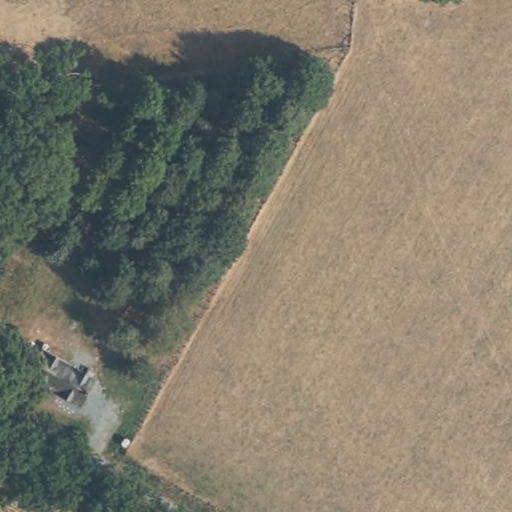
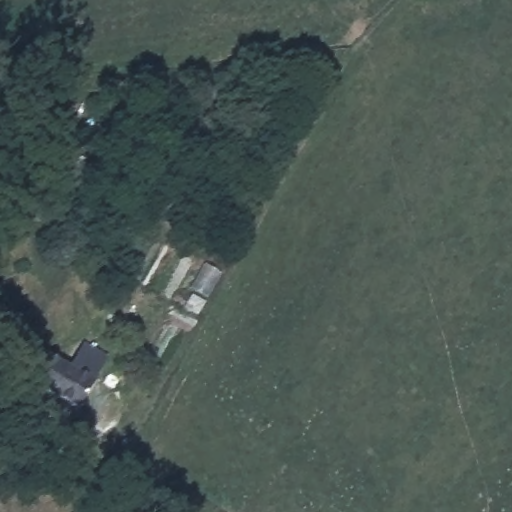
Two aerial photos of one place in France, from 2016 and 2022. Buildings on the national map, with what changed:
unchanged [(94,377),(77,408),(25,378),(43,346),(94,377)]

